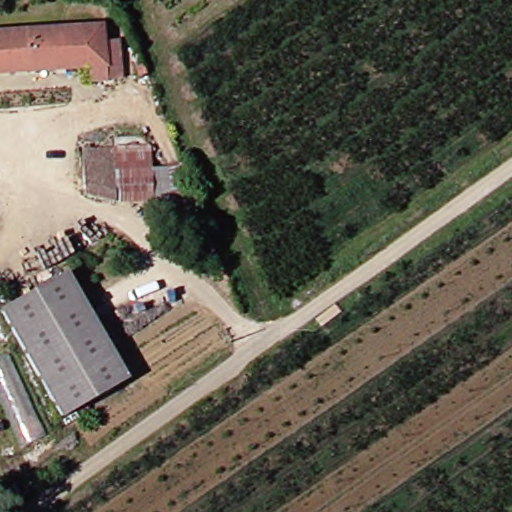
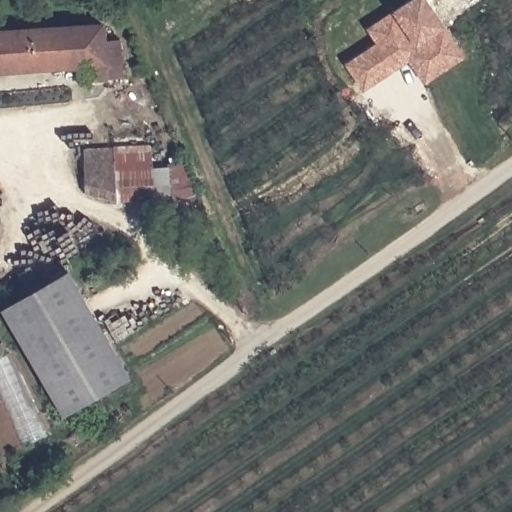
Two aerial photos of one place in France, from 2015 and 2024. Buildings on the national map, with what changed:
unchanged [(30,0),(57,0),(57,3),(30,0)]
new [(408,0),(430,0),(447,25),(467,58),(425,85),(409,63),(365,91),(345,63),(376,44),(367,28),(392,10),(408,0)]
unchanged [(115,21),(122,29),(115,36),(108,29),(115,21)]
unchanged [(97,26),(100,51),(118,50),(122,86),(84,91),(81,71),(0,78),(0,36),(97,26)]
unchanged [(139,74),(144,81),(134,88),(129,81),(139,74)]
unchanged [(147,154),(149,174),(168,174),(168,205),(120,209),(82,201),(79,155),(147,154)]
unchanged [(4,317),(69,278),(131,381),(67,420),(4,317)]

